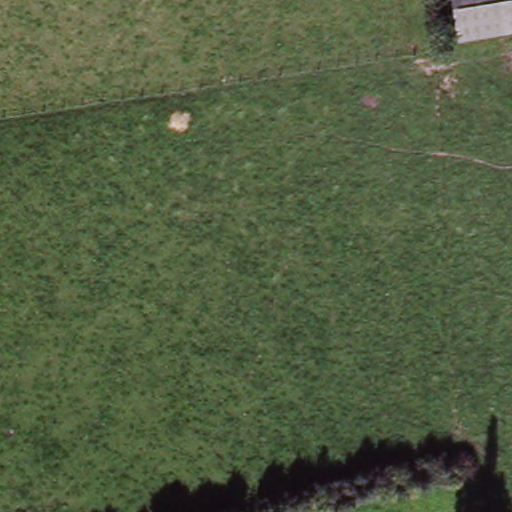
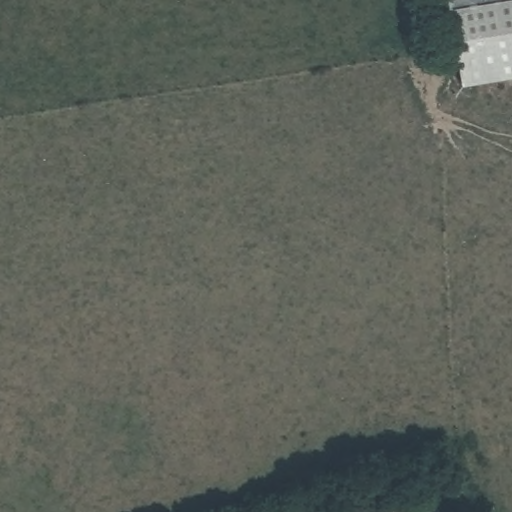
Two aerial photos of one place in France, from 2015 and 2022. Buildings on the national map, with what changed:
unchanged [(455,0),(512,0),(512,33),(461,40),(455,0)]
new [(512,78),(467,85),(461,40),(512,33),(512,78)]

